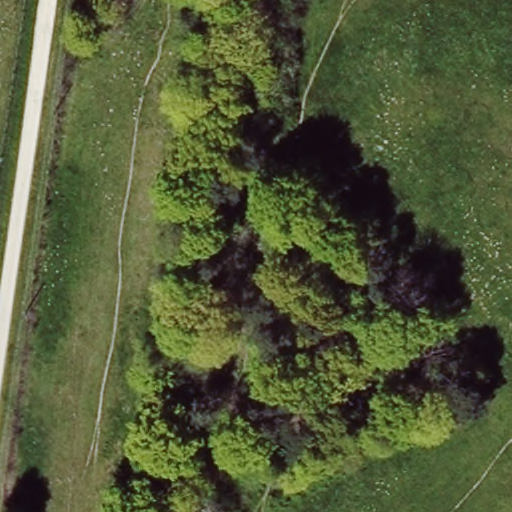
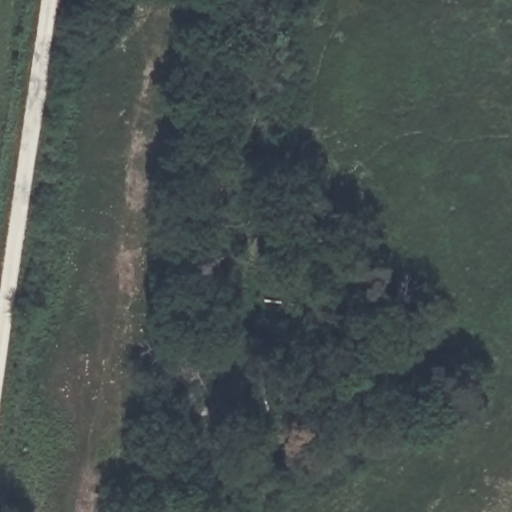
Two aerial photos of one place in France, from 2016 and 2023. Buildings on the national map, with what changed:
[]

